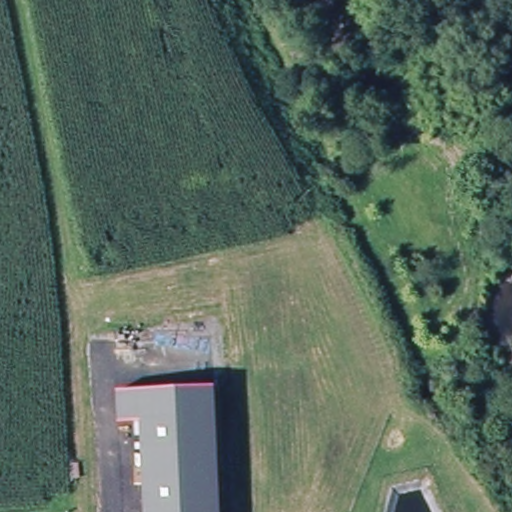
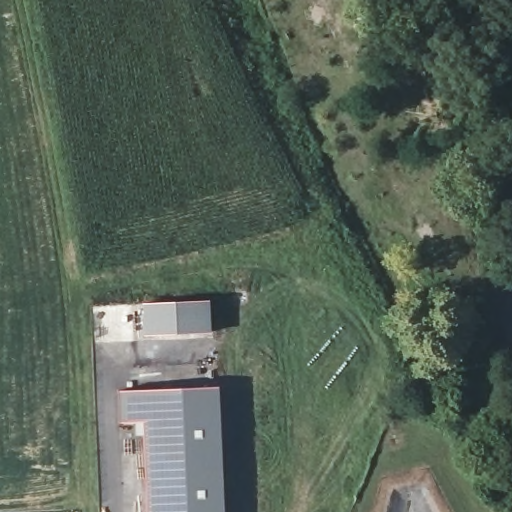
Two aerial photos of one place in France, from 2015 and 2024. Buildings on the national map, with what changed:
new [(145,304),(212,301),(213,332),(146,336),(145,304)]
unchanged [(221,512),(145,512),(142,422),(118,424),(117,391),(215,385),(221,512)]

